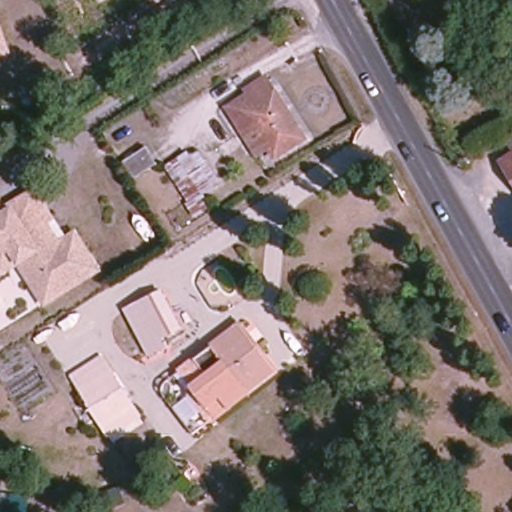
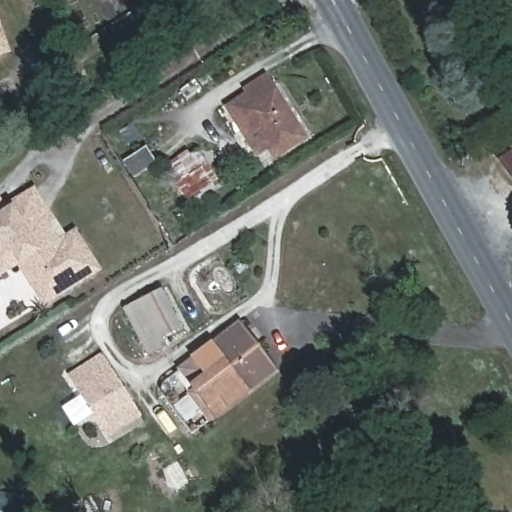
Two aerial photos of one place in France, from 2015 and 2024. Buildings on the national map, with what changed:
unchanged [(0,57),(0,25),(10,53),(0,57)]
unchanged [(241,129),(227,106),(251,92),(259,87),(266,98),(278,91),(307,138),(275,156),(268,147),(256,153),(241,129)]
unchanged [(505,141),(512,137),(512,153),(505,141)]
unchanged [(145,148),(157,168),(133,182),(123,161),(145,148)]
unchanged [(201,151),(221,186),(203,196),(209,208),(193,217),(168,174),(201,151)]
unchanged [(512,155),(512,183),(499,163),(512,155)]
unchanged [(52,219),(46,223),(60,244),(76,234),(99,269),(48,302),(21,262),(14,250),(0,248),(0,220),(12,213),(9,208),(34,192),(52,219)]
unchanged [(0,202),(5,211),(9,208),(12,213),(0,220),(0,202)]
unchanged [(21,262),(2,275),(0,271),(0,248),(14,250),(21,262)]
unchanged [(126,314),(160,295),(181,332),(145,351),(126,314)]
unchanged [(274,371),(216,415),(193,386),(207,374),(196,358),(240,325),(274,371)]
unchanged [(103,364),(112,381),(115,379),(139,419),(107,439),(72,383),(73,382),(103,364)]

